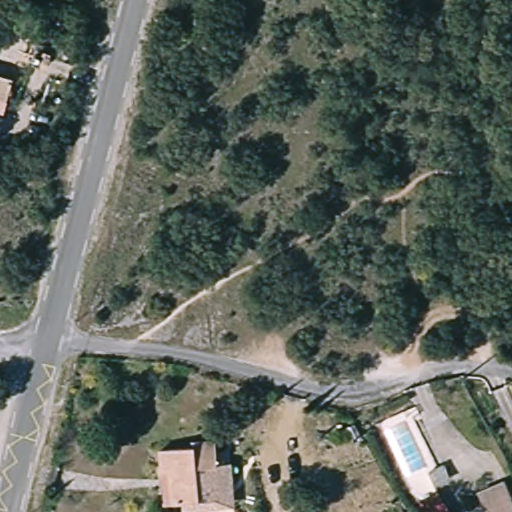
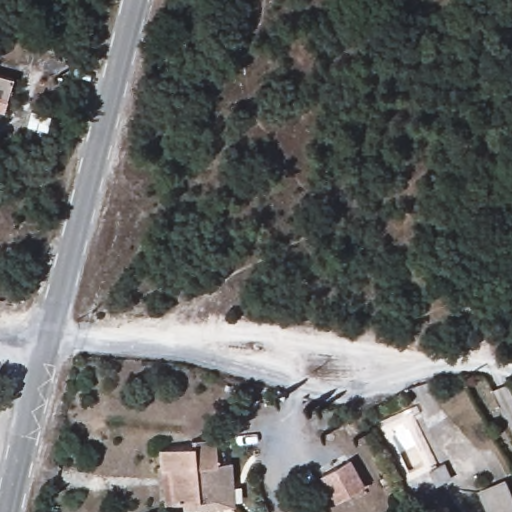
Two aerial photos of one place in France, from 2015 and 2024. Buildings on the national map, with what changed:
unchanged [(3,92),(0,103),(0,90),(3,92)]
unchanged [(229,499),(180,501),(180,492),(170,493),(161,493),(161,459),(160,440),(191,440),(191,434),(214,434),(215,445),(220,445),(221,457),(228,457),(229,499)]
new [(365,488),(335,505),(320,477),(350,460),(365,488)]
unchanged [(447,492),(445,485),(442,478),(452,472),(457,476),(461,485),(447,492)]
unchanged [(496,488),(507,512),(486,512),(480,495),(496,488)]

